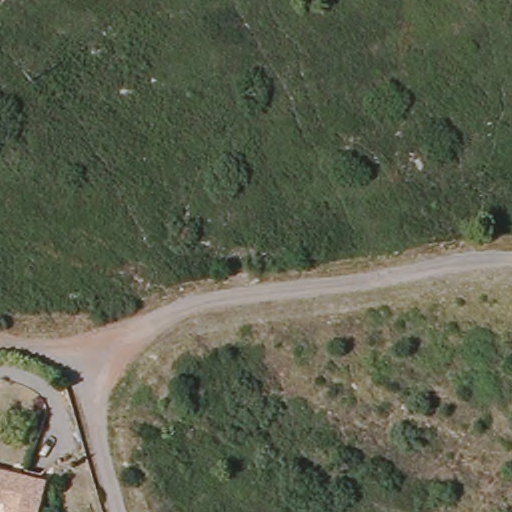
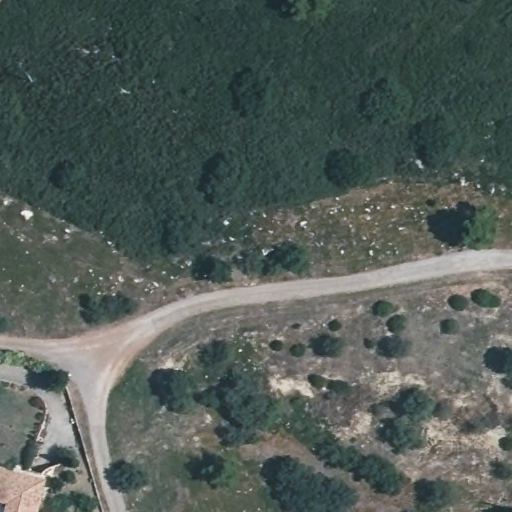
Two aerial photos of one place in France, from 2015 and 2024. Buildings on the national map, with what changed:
unchanged [(48,485),(41,512),(10,512),(11,505),(0,503),(0,472),(48,485)]

